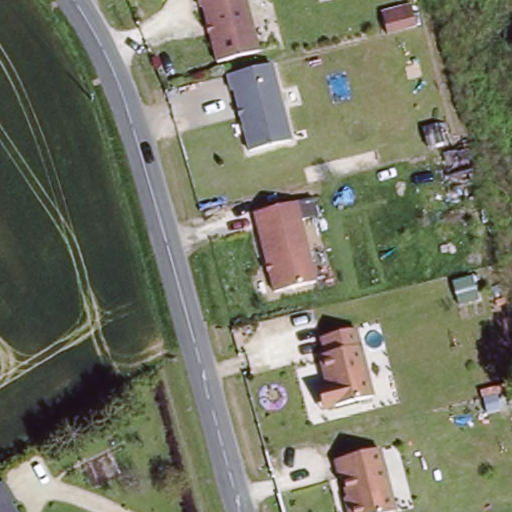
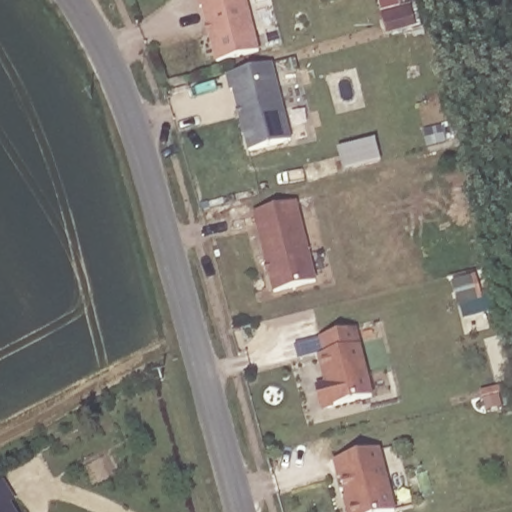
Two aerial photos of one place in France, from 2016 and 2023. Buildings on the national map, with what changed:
unchanged [(217,62),(202,3),(197,4),(196,0),(243,0),(257,54),(217,62)]
unchanged [(378,16),(408,7),(414,31),(384,36),(378,16)]
unchanged [(232,92),(229,92),(225,77),(272,66),(291,142),(248,152),(232,92)]
unchanged [(292,204),(312,283),(270,292),(249,213),(292,204)]
unchanged [(312,391),(318,389),(324,388),(315,360),(321,358),(317,342),(352,335),(372,400),(324,410),(317,412),(312,391)]
unchanged [(372,452),(388,512),(342,512),(333,478),(330,479),(326,460),(372,452)]
unchanged [(4,499),(11,512),(0,512),(0,480),(10,496),(4,499)]

